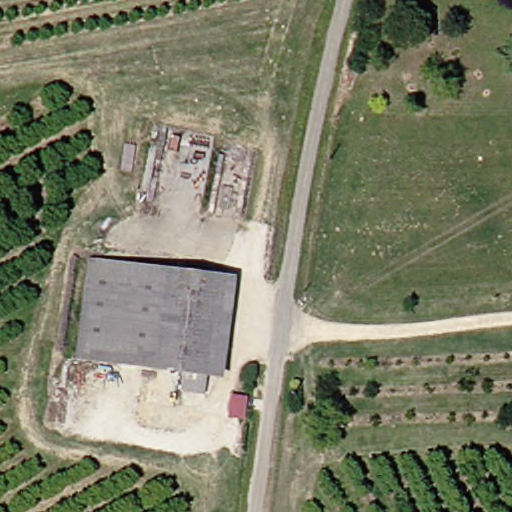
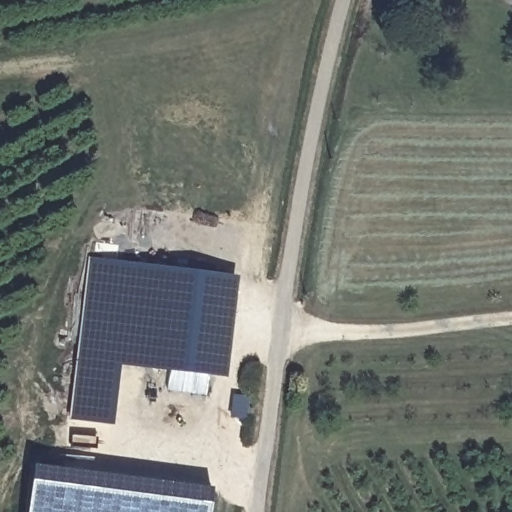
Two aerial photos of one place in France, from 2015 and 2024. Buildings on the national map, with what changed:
unchanged [(192,390),(194,370),(84,356),(97,257),(230,276),(243,278),(228,374),(216,372),(212,392),(192,390)]
new [(113,425),(75,420),(84,356),(121,360),(113,425)]
new [(211,487),(208,512),(25,512),(31,465),(211,487)]

